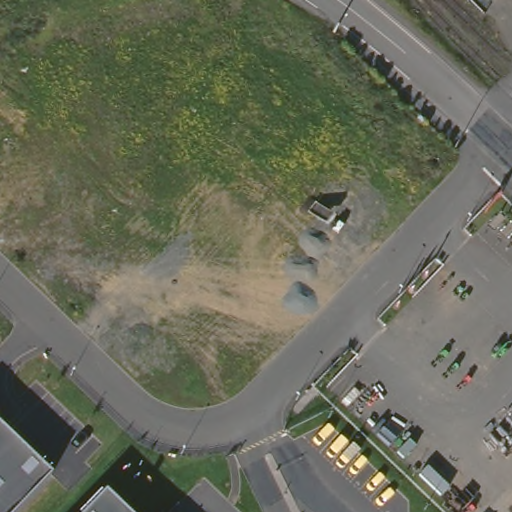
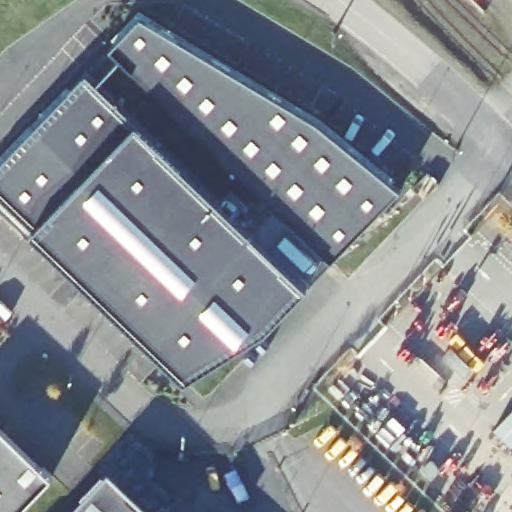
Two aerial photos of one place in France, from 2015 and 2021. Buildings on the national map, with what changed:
new [(141,19),(314,121),(399,190),(330,259),(111,50),(141,19)]
new [(36,229),(0,195),(0,165),(87,75),(136,123),(307,287),(267,330),(186,381),(33,233),(36,229)]
unchanged [(16,512),(0,512),(0,424),(53,473),(16,512)]
unchanged [(126,512),(88,512),(106,493),(126,512)]

